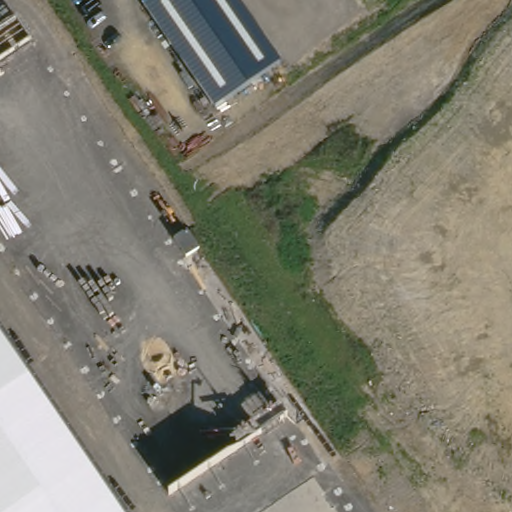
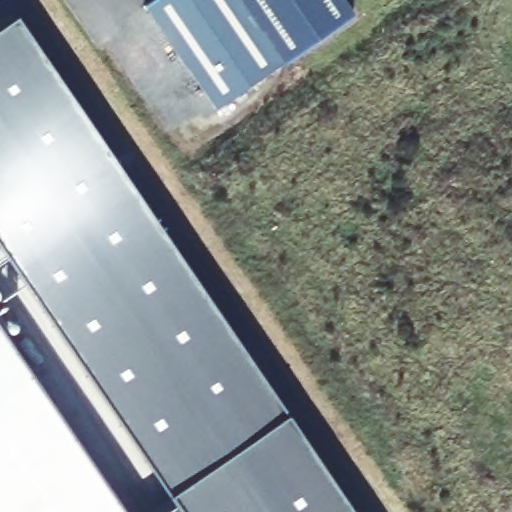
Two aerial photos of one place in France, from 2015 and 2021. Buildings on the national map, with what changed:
unchanged [(282,62),(215,108),(144,4),(150,0),(239,0),(282,62)]
new [(354,14),(282,62),(239,0),(344,0),(354,14)]
new [(142,10),(184,71),(162,87),(120,25),(142,10)]
new [(0,243),(0,30),(16,19),(352,512),(141,512),(169,492),(0,243)]
demolished [(77,164),(116,221),(106,229),(276,476),(224,512),(163,512),(0,274),(0,76),(66,171),(77,164)]
demolished [(206,259),(193,268),(181,250),(194,241),(206,259)]
unchanged [(0,512),(0,332),(123,512),(0,512)]

